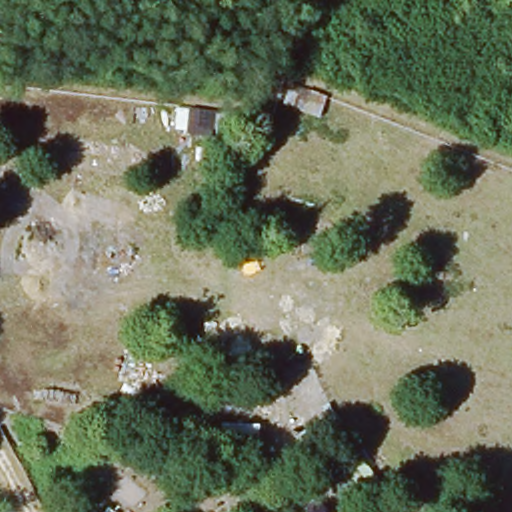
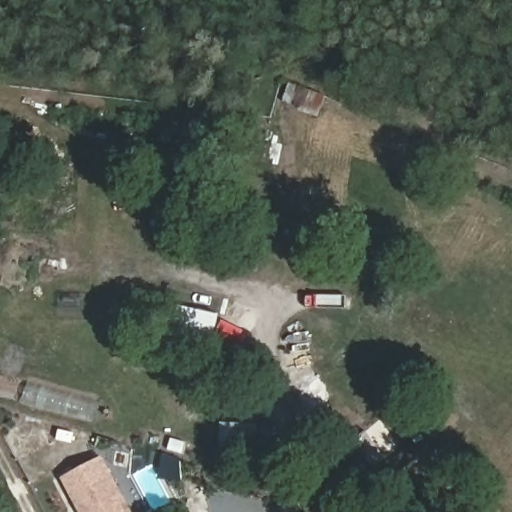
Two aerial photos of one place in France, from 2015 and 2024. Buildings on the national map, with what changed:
unchanged [(327,483),(315,467),(348,442),(361,458),(327,483)]
new [(62,478),(104,456),(133,512),(80,512),(62,478)]

